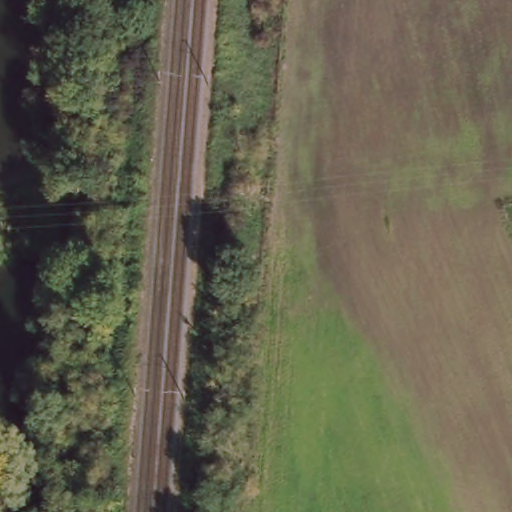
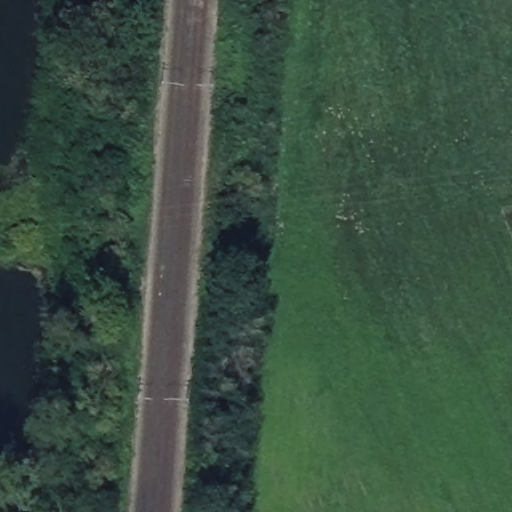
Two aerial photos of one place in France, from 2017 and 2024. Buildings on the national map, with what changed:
unchanged [(71,303),(70,318),(61,317),(62,303),(71,303)]

